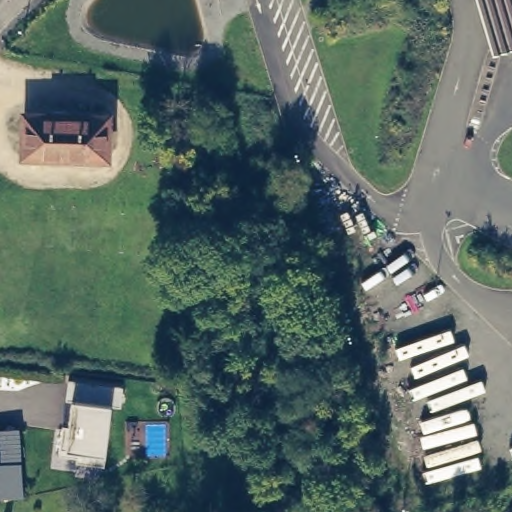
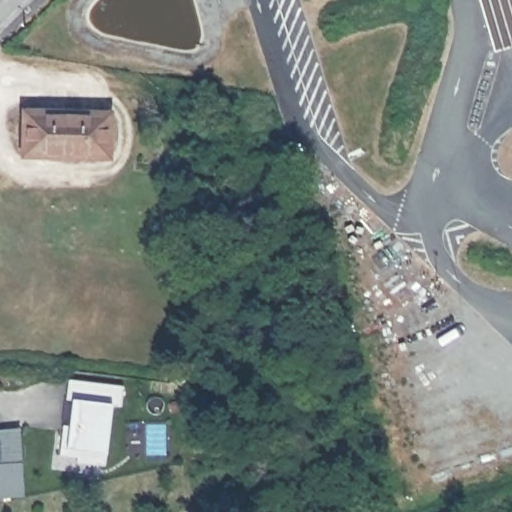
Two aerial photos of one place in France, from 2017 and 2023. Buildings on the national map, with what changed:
unchanged [(492,0),(512,0),(512,44),(506,46),(492,0)]
unchanged [(24,106),(106,108),(105,149),(23,147),(24,106)]
unchanged [(68,380),(124,387),(122,408),(112,406),(104,465),(75,464),(75,458),(59,456),(68,380)]
unchanged [(20,429),(23,497),(0,499),(0,429),(20,429)]

